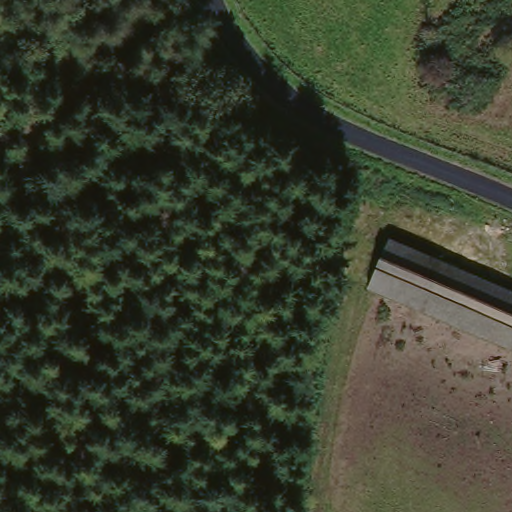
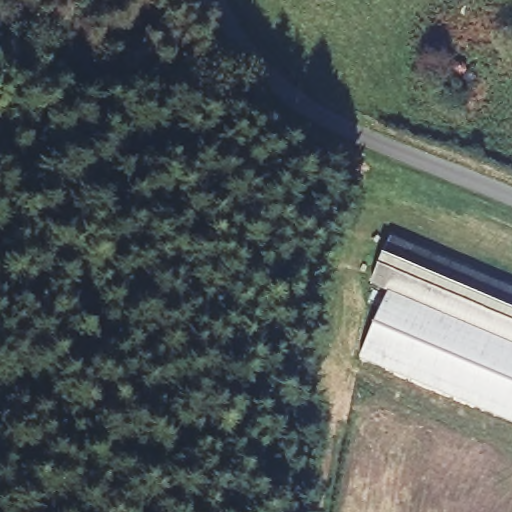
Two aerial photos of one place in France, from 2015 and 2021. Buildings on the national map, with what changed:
unchanged [(395,234),(512,284),(512,344),(373,286),(395,234)]
new [(512,344),(512,424),(360,360),(389,293),(512,344)]

